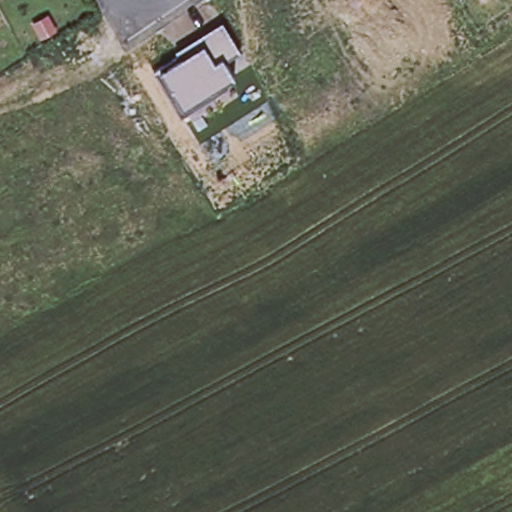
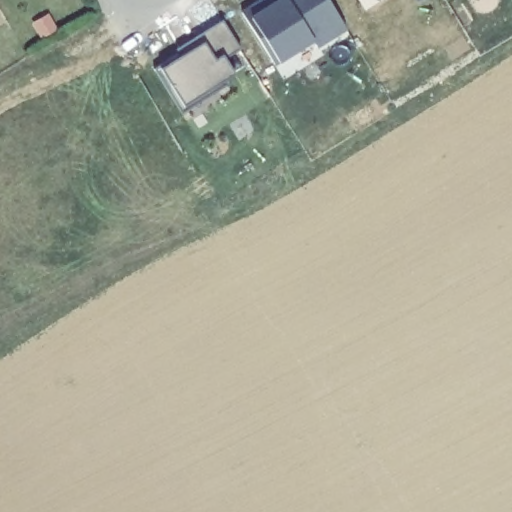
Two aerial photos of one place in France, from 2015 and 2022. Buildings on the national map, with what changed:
new [(270,0),(275,0),(279,6),(287,0),(328,0),(336,12),(323,20),(336,40),(319,50),(315,44),(277,67),(245,16),(264,4),(270,0)]
unchanged [(225,79),(227,85),(182,112),(156,68),(179,53),(176,49),(221,21),(239,49),(224,58),(232,74),(225,79)]

